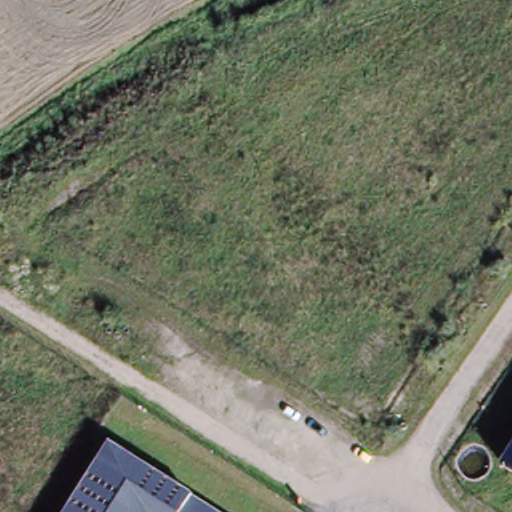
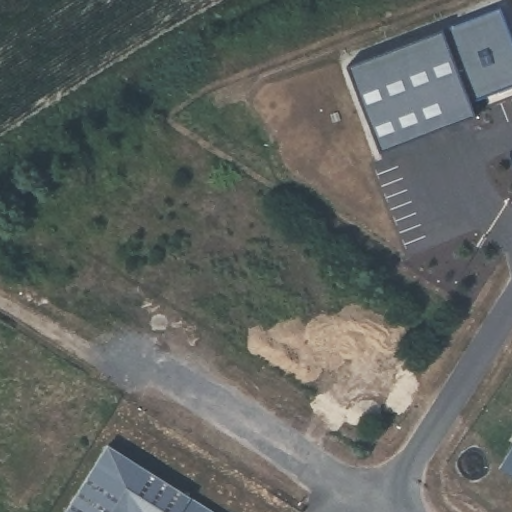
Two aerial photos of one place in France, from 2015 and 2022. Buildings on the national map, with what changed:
new [(505,10),(512,28),(512,89),(474,101),(479,114),(385,151),(350,70),(505,10)]
unchanged [(63,512),(105,445),(211,512),(63,512)]
unchanged [(501,465),(512,448),(512,473),(501,465)]

